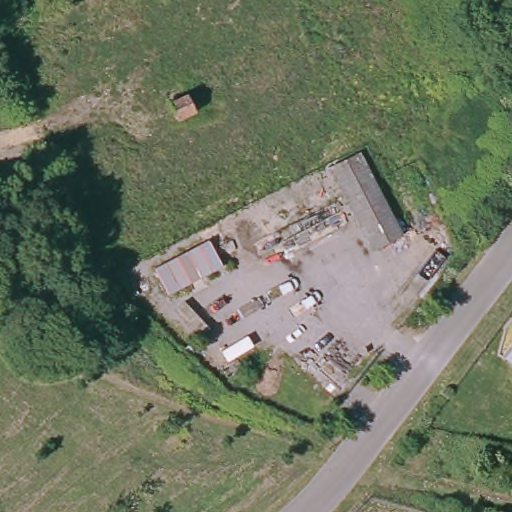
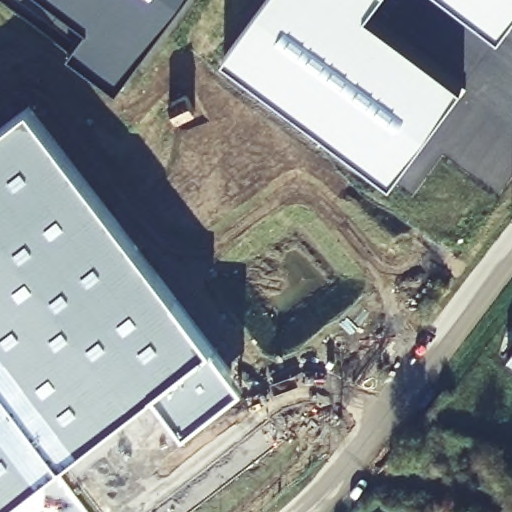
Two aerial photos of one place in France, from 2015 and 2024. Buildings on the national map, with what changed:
demolished [(55,8),(65,4),(62,0),(160,0),(54,51),(37,16),(41,14),(55,8)]
new [(121,84),(73,48),(96,21),(67,0),(185,0),(121,84)]
new [(226,55),(267,0),(377,0),(367,13),(464,83),(392,178),(226,55)]
demolished [(415,152),(377,167),(313,0),(355,0),(415,152)]
new [(500,32),(456,0),(512,0),(512,17),(500,32)]
new [(213,345),(245,385),(185,432),(155,390),(0,510),(0,129),(28,107),(213,345)]
demolished [(86,138),(95,134),(134,212),(92,234),(40,138),(75,119),(86,138)]
demolished [(355,143),(389,206),(400,225),(370,241),(366,233),(327,158),(355,143)]
demolished [(217,238),(228,258),(167,290),(157,270),(217,238)]
unchanged [(512,357),(512,367),(507,363),(512,357)]

